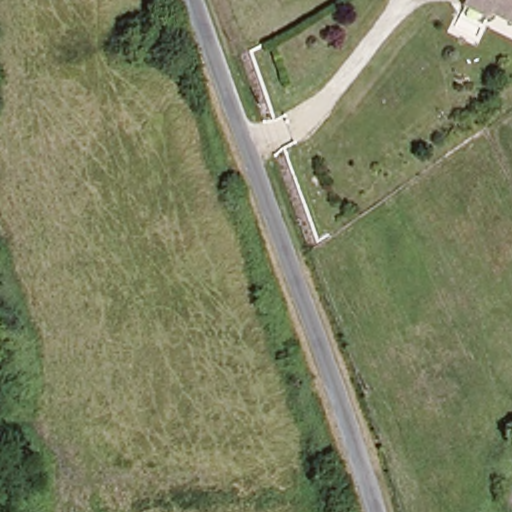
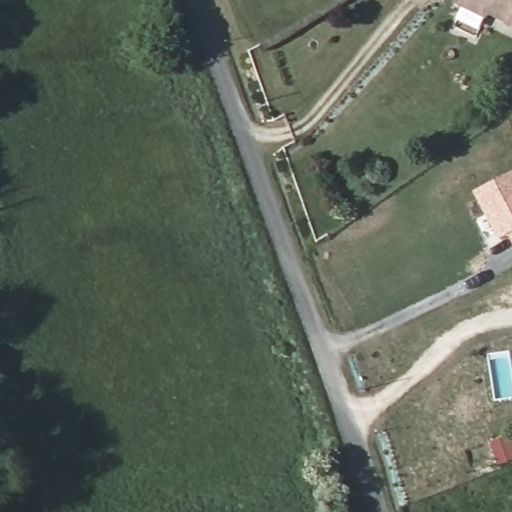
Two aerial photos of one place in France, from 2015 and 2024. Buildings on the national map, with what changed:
unchanged [(486,17),(458,3),(459,0),(512,0),(512,23),(488,12),(486,17)]
new [(501,240),(476,192),(512,174),(512,239),(510,235),(501,240)]

